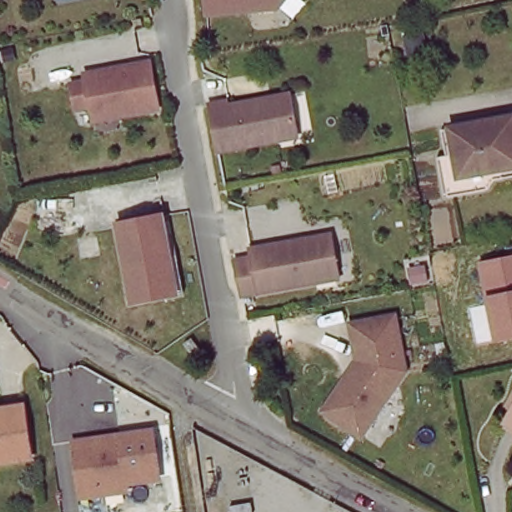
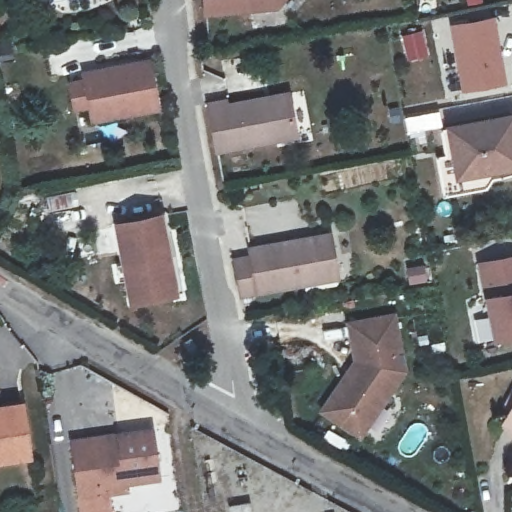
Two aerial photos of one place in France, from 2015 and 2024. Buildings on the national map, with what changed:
unchanged [(280,10),(202,19),(199,0),(284,0),(280,10)]
new [(492,19),(502,82),(463,89),(451,27),(492,19)]
unchanged [(92,120),(90,113),(75,116),(70,92),(85,89),(84,82),(149,69),(158,115),(118,123),(93,128),(92,120)]
unchanged [(277,140),(218,151),(209,104),(226,101),(227,106),(289,94),(296,131),(297,137),(277,140)]
unchanged [(491,160),(462,165),(454,117),(512,107),(512,156),(491,160)]
unchanged [(462,165),(491,160),(494,177),(443,186),(434,145),(445,142),(442,119),(454,117),(462,165)]
unchanged [(178,293),(166,295),(127,303),(112,225),(156,217),(165,260),(172,259),(178,293)]
unchanged [(316,282),(258,293),(241,296),(233,262),(252,258),(250,250),(330,236),(337,273),(338,278),(316,282)]
unchanged [(493,340),(477,262),(512,255),(512,336),(493,340)]
unchanged [(400,372),(355,437),(318,411),(346,384),(340,380),(352,362),(345,325),(352,323),(389,316),(400,372)]
unchanged [(192,338),(202,353),(194,358),(184,343),(192,338)]
unchanged [(512,393),(512,429),(497,422),(512,393)]
unchanged [(24,400),(32,451),(0,456),(0,403),(24,400)]
unchanged [(76,492),(66,439),(113,434),(113,430),(149,425),(156,471),(121,478),(121,486),(76,492)]

